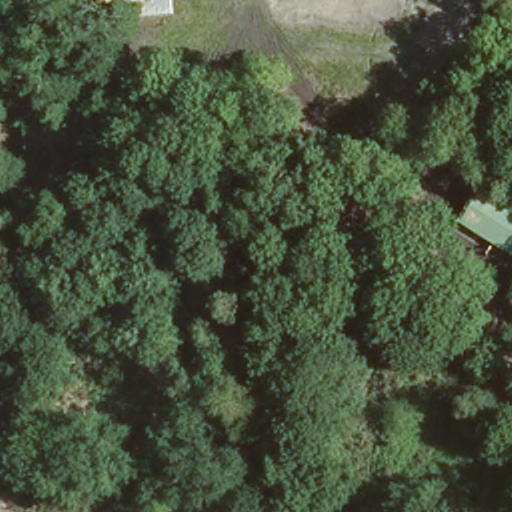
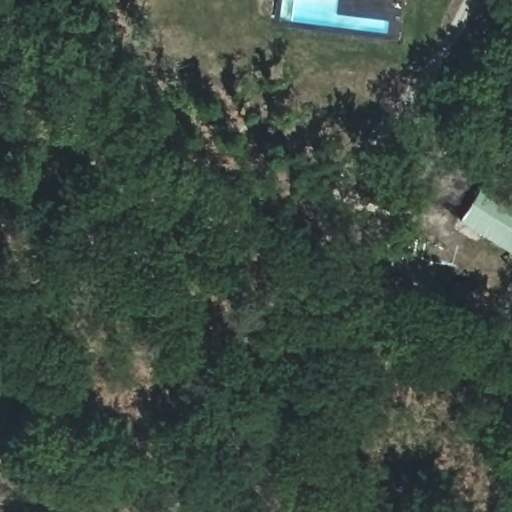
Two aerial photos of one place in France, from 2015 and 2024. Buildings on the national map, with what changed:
unchanged [(489,182),(512,199),(512,256),(460,221),(489,182)]

